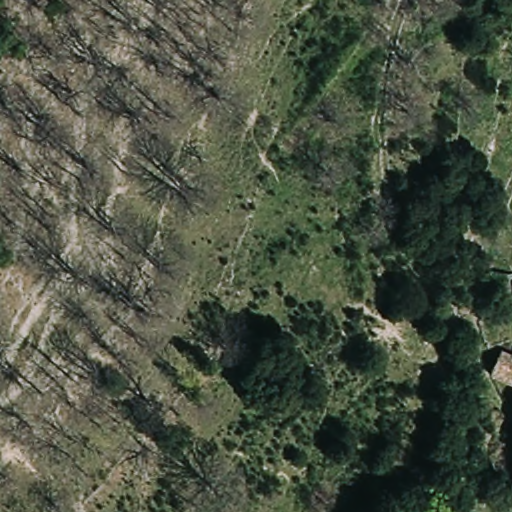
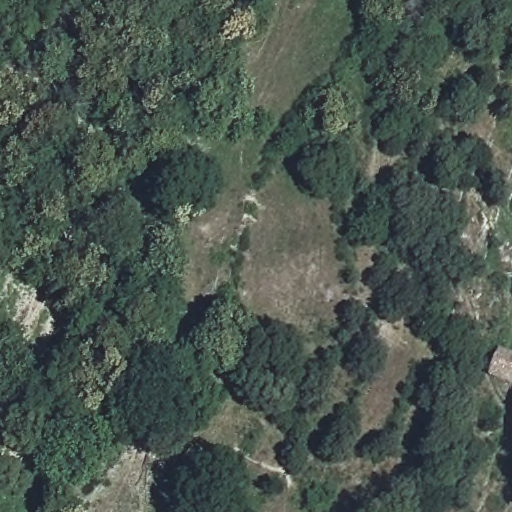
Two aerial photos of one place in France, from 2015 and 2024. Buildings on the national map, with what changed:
unchanged [(488,372),(489,367),(497,346),(505,349),(508,337),(512,339),(512,384),(494,377),(488,372)]

